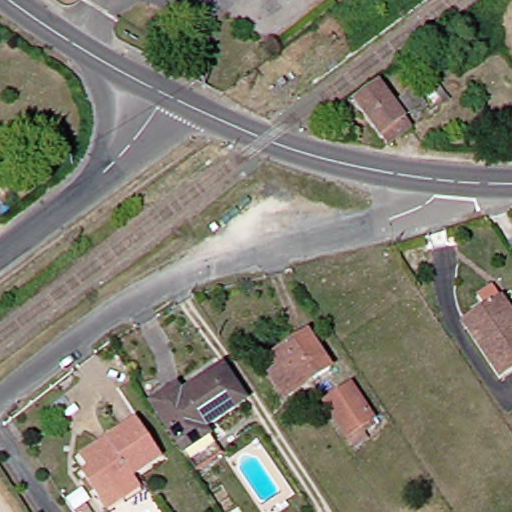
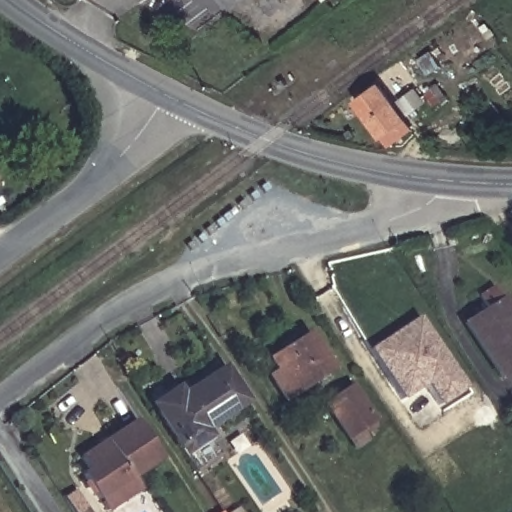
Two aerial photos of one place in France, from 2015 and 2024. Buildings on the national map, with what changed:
unchanged [(326,3),(323,0),(329,0),(326,3)]
unchanged [(399,123),(398,124),(406,134),(385,149),(378,139),(377,139),(353,107),(375,91),(399,123)]
unchanged [(420,107),(404,119),(394,106),(411,94),(420,107)]
unchanged [(473,303),(488,293),(512,329),(512,373),(496,383),(460,329),(481,315),(473,303)]
new [(463,388),(439,404),(425,384),(402,399),(369,350),(418,317),(463,388)]
unchanged [(285,400),(274,383),(283,377),(271,359),(308,334),(331,369),(285,400)]
unchanged [(219,374),(242,408),(201,435),(218,460),(192,477),(153,418),(219,374)]
unchanged [(351,387),(376,426),(372,429),(368,424),(360,429),(367,440),(355,448),(326,404),(351,387)]
unchanged [(98,512),(93,504),(77,479),(83,475),(75,462),(132,426),(156,464),(127,482),(134,494),(106,512),(98,512)]
new [(87,512),(72,512),(62,497),(73,490),(87,512)]

